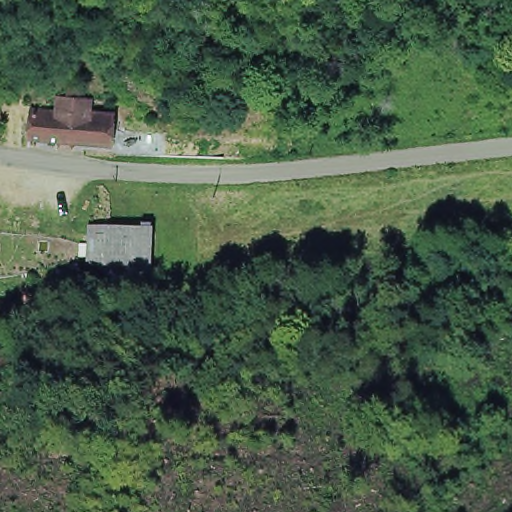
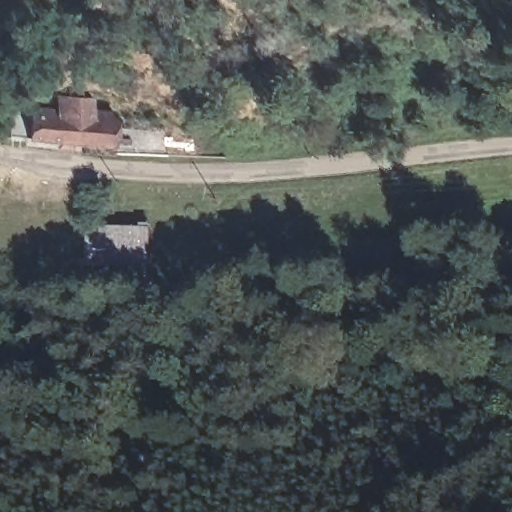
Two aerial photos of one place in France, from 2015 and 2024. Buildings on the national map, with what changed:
unchanged [(34,139),(35,122),(36,111),(63,112),(64,97),(96,99),(96,115),(120,116),(118,146),(34,139)]
unchanged [(120,278),(118,262),(95,262),(95,221),(157,223),(155,263),(155,280),(120,278)]

